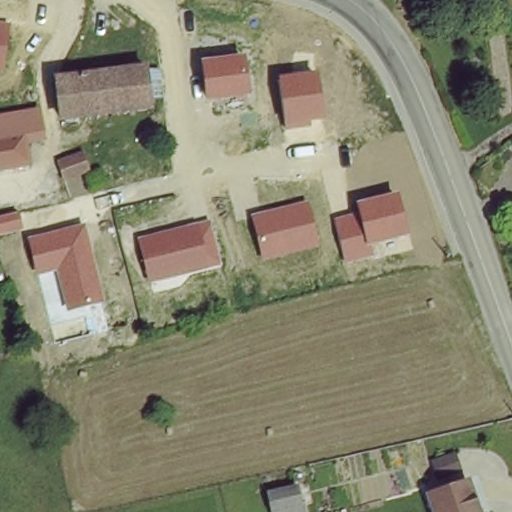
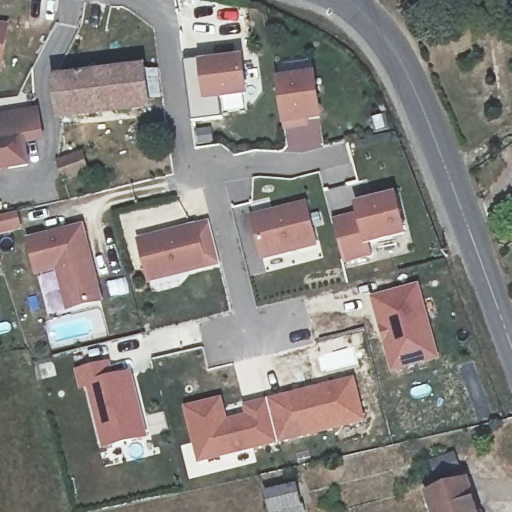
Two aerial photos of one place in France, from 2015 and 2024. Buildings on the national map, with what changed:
demolished [(33,4),(0,2),(0,0),(33,0),(33,4)]
unchanged [(0,72),(0,24),(9,25),(2,72),(0,72)]
unchanged [(248,95),(205,101),(200,62),(243,56),(248,95)]
unchanged [(133,66),(134,72),(143,71),(148,109),(58,120),(53,82),(126,73),(126,67),(133,66)]
unchanged [(323,120),(308,122),(309,127),(284,131),(278,78),(316,73),(323,120)]
unchanged [(0,121),(36,114),(41,133),(20,137),(0,141),(0,121)]
unchanged [(0,165),(0,141),(20,137),(24,160),(0,165)]
unchanged [(63,184),(56,167),(78,157),(86,174),(63,184)]
unchanged [(406,235),(369,244),(372,257),(344,264),(334,220),(358,214),(355,203),(397,193),(406,235)]
unchanged [(318,247),(262,261),(250,216),(307,202),(318,247)]
unchanged [(220,265),(148,283),(136,239),(208,221),(220,265)]
unchanged [(83,225),(103,301),(66,310),(56,271),(35,275),(27,238),(83,225)]
new [(391,371),(371,297),(419,283),(440,359),(391,371)]
new [(148,438),(102,449),(87,388),(79,389),(75,370),(110,362),(114,376),(132,373),(148,438)]
new [(366,423),(198,463),(184,408),(223,398),(228,420),(246,416),(244,405),(355,380),(366,423)]
unchanged [(472,486),(479,512),(434,512),(430,498),(472,486)]
unchanged [(297,495),(300,512),(274,512),(271,500),(297,495)]

